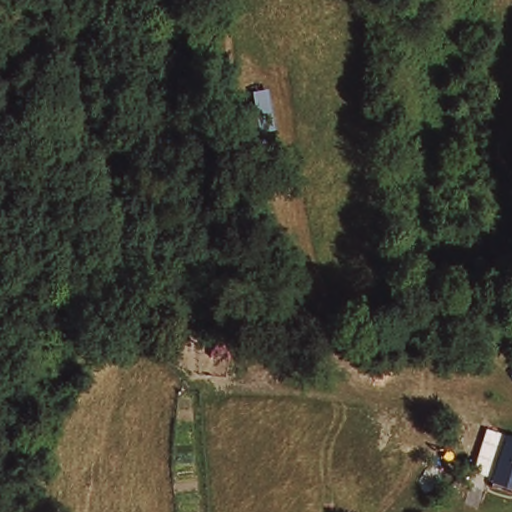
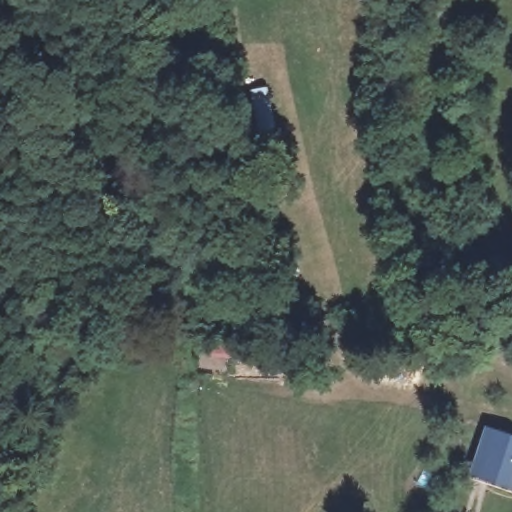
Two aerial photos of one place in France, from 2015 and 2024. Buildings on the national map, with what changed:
new [(512,435),(512,485),(470,473),(486,425),(512,435)]
demolished [(488,483),(497,449),(512,453),(512,490),(488,483)]

